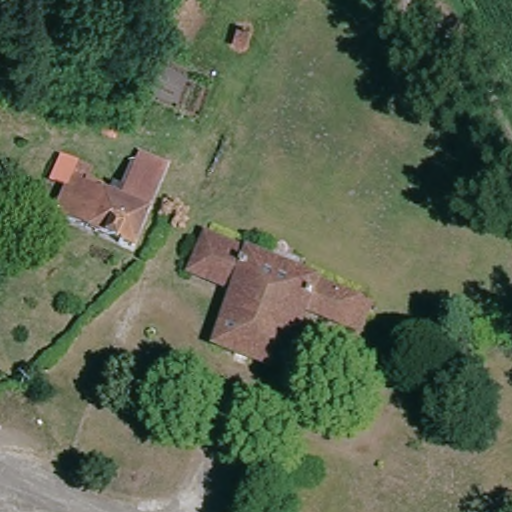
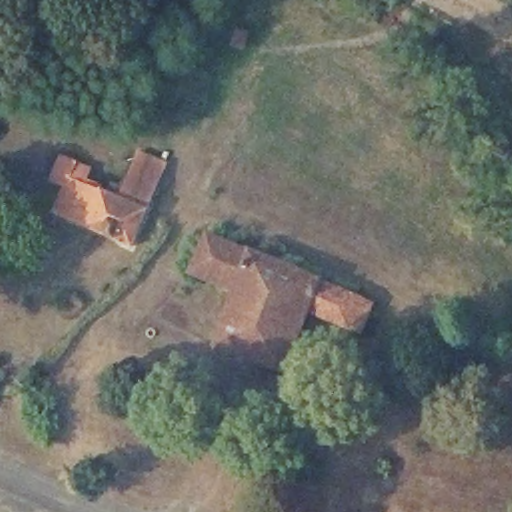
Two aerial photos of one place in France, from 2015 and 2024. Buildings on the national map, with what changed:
unchanged [(243,49),(232,46),(238,30),(248,34),(243,49)]
unchanged [(51,214),(64,187),(50,180),(60,158),(89,171),(85,181),(100,188),(98,192),(105,195),(109,185),(121,190),(138,153),(165,165),(129,248),(51,214)]
unchanged [(272,362),(217,342),(237,287),(191,269),(206,232),(251,249),(252,248),(320,276),(320,277),(374,299),(363,326),(310,305),(295,299),(272,362)]
unchanged [(287,367),(272,362),(295,299),(310,305),(287,367)]

